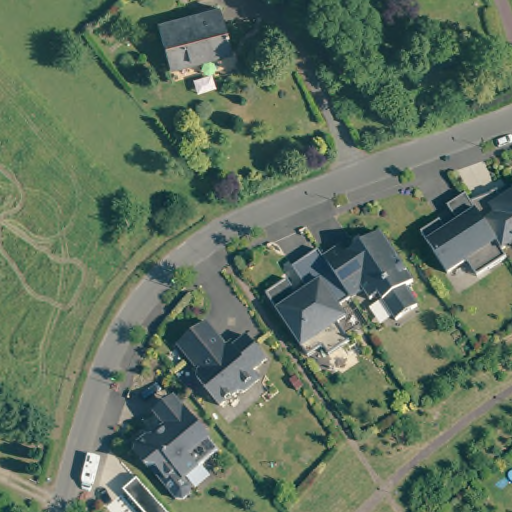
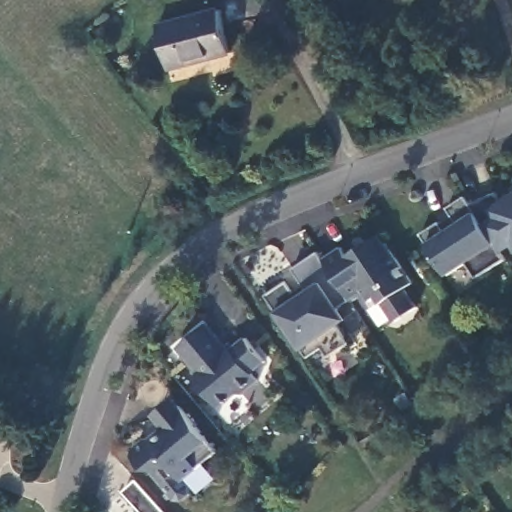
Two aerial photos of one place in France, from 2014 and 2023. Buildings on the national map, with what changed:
unchanged [(217,14),(233,53),(171,73),(156,31),(217,14)]
unchanged [(491,194),(497,191),(497,193),(504,203),(512,199),(512,246),(502,252),(496,243),(471,203),(491,195),(491,194)]
unchanged [(467,197),(471,203),(496,243),(502,252),(507,260),(478,279),(468,263),(448,275),(422,234),(441,222),(447,232),(459,225),(448,208),(466,197),(467,197)]
unchanged [(343,248),(349,257),(381,235),(414,284),(405,289),(418,308),(397,322),(379,296),(371,302),(364,292),(352,300),(324,260),(343,248)]
unchanged [(339,309),(346,320),(339,325),(351,343),(329,357),(323,348),(308,359),(267,295),(288,281),(299,298),(308,292),(293,269),(319,252),(322,256),(324,260),(352,300),(339,309)]
unchanged [(206,324),(227,349),(232,350),(246,338),(266,362),(251,372),(252,373),(258,381),(243,394),(237,394),(220,408),(197,380),(197,372),(177,348),(206,324)]
unchanged [(184,480),(191,488),(190,494),(183,500),(176,500),(153,473),(154,469),(147,469),(136,455),(137,448),(148,439),(155,439),(167,430),(161,422),(156,417),(176,400),(180,406),(219,452),(184,480)]
unchanged [(166,512),(142,512),(124,492),(137,480),(166,512)]

